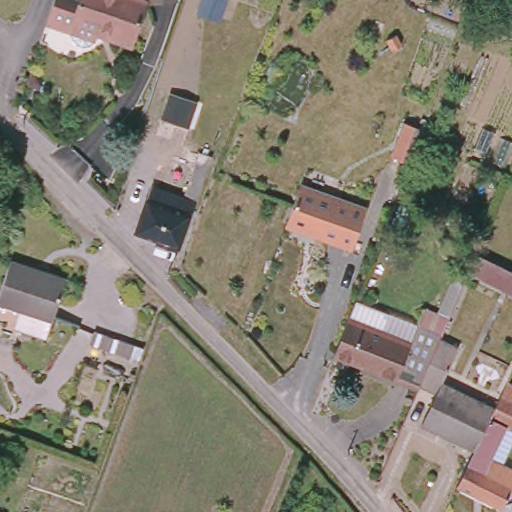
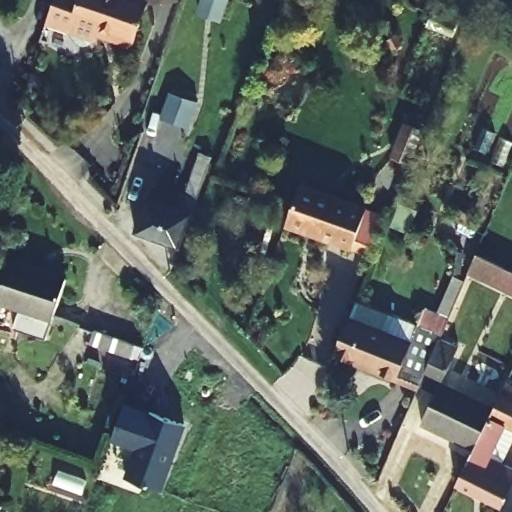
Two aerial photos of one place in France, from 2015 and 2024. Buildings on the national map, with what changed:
unchanged [(67,40),(44,32),(55,0),(120,0),(147,10),(132,53),(112,46),(113,41),(72,26),(67,40)]
unchanged [(120,0),(178,0),(178,2),(150,4),(147,10),(120,0)]
unchanged [(432,113),(411,167),(390,159),(410,106),(432,113)]
unchanged [(142,131),(197,152),(212,157),(177,249),(133,234),(138,221),(113,212),(142,131)]
unchanged [(363,207),(349,247),(283,222),(298,182),(363,207)]
unchanged [(65,280),(52,319),(0,301),(0,290),(10,260),(65,280)]
unchanged [(512,277),(512,302),(470,280),(478,260),(512,277)]
unchanged [(437,336),(433,334),(416,327),(410,343),(347,319),(355,298),(417,322),(423,305),(435,309),(450,276),(462,281),(437,336)]
new [(45,335),(14,325),(20,308),(52,319),(45,335)]
unchanged [(347,319),(410,343),(416,327),(437,336),(436,340),(417,385),(415,390),(333,357),(347,319)]
unchanged [(93,337),(140,353),(135,368),(88,352),(93,337)]
unchanged [(422,426),(437,395),(417,385),(436,340),(459,351),(442,386),(492,411),(473,451),(422,426)]
unchanged [(512,388),(512,431),(504,427),(489,457),(512,468),(512,482),(500,507),(457,487),(473,451),(492,411),(505,384),(512,388)]
new [(162,491),(126,476),(137,448),(111,438),(123,402),(185,424),(162,491)]

